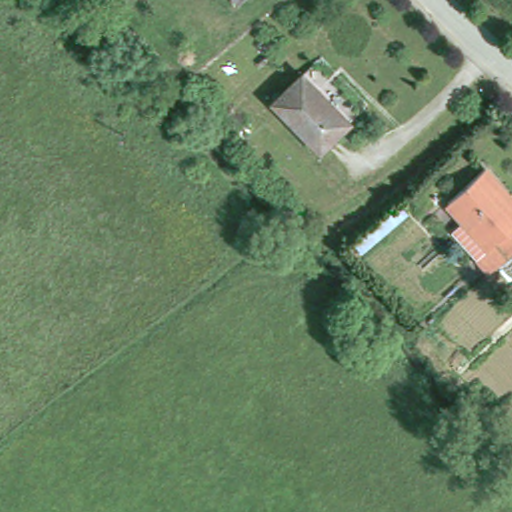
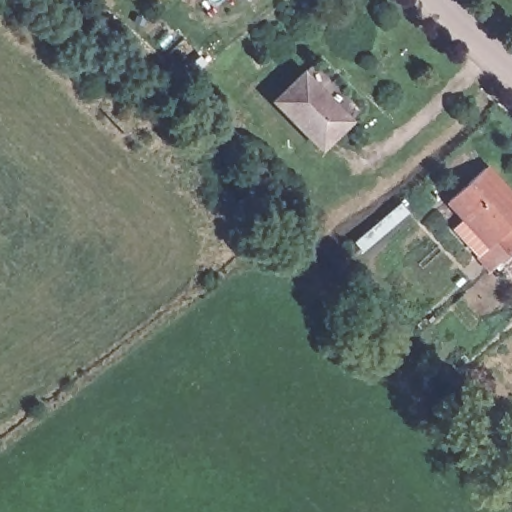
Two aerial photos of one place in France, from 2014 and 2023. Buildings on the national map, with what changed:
unchanged [(357,118),(325,147),(279,100),(311,70),(357,118)]
unchanged [(451,207),(487,175),(511,199),(505,207),(512,214),(512,256),(511,256),(489,276),(476,262),(490,248),(451,207)]

